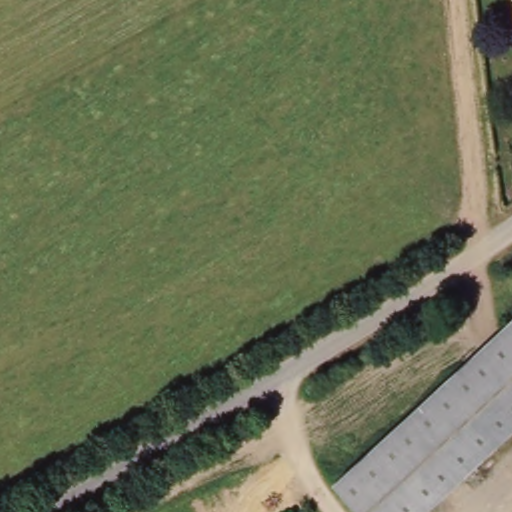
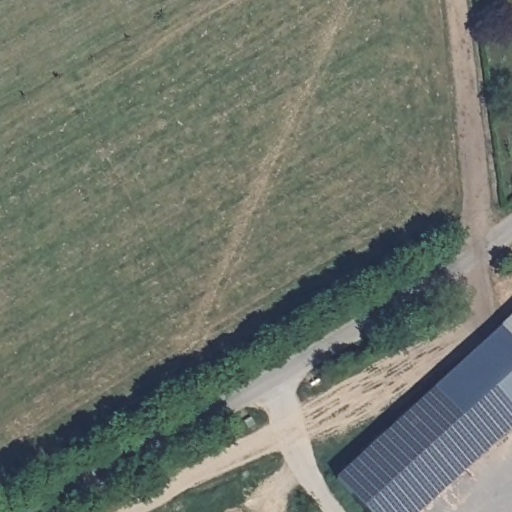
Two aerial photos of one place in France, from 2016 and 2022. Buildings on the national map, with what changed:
unchanged [(385,512),(349,476),(512,318),(512,417),(414,512),(385,512)]

